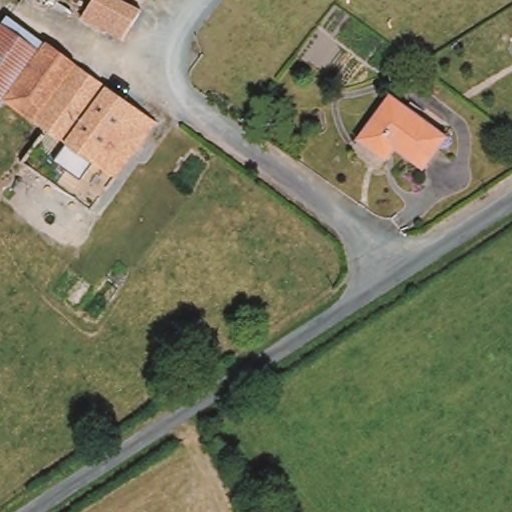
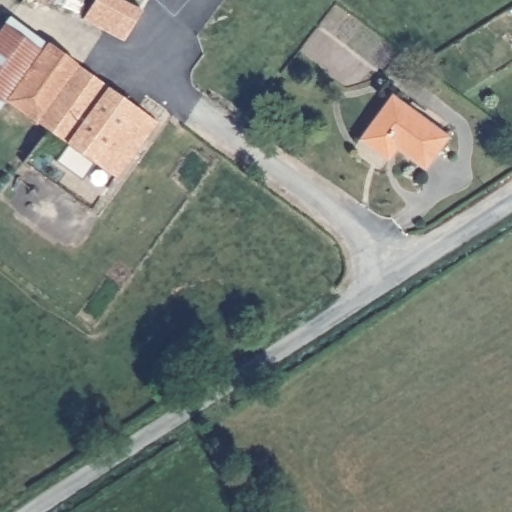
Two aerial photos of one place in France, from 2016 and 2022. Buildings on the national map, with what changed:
unchanged [(96,0),(147,0),(151,2),(131,34),(106,20),(90,11),(96,0)]
unchanged [(0,29),(7,20),(48,49),(10,98),(0,111),(0,29)]
unchanged [(96,210),(25,159),(50,126),(10,98),(48,49),(51,44),(79,64),(159,120),(96,210)]
unchanged [(376,151),(359,136),(392,92),(447,135),(423,166),(396,146),(387,159),(376,151)]

